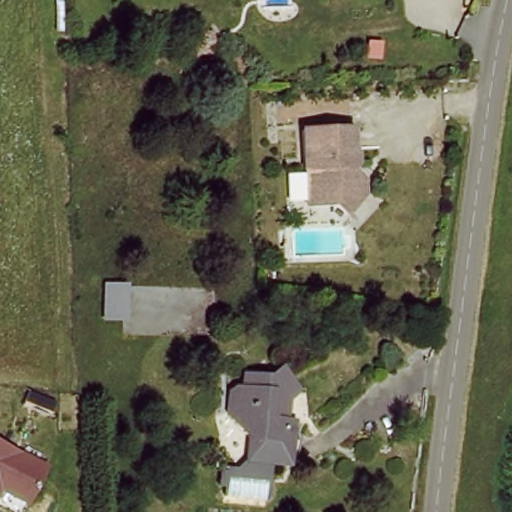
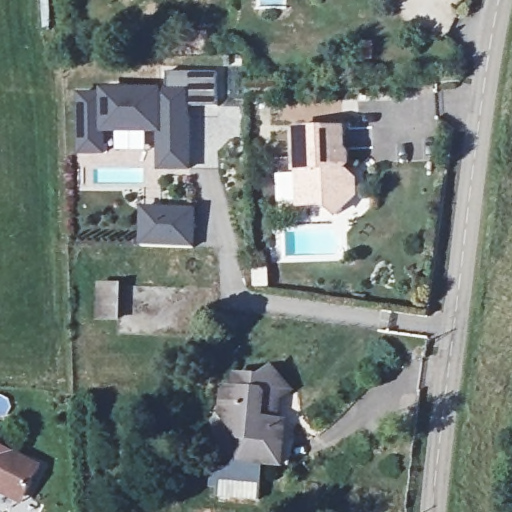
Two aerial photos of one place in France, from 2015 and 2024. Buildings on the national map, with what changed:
new [(102,95),(102,89),(171,90),(171,74),(219,74),(219,107),(194,107),(193,171),(161,172),(161,135),(110,135),(108,156),(83,156),(83,96),(102,95)]
unchanged [(305,209),(304,174),(302,174),(301,135),(349,133),(350,153),(354,157),(354,176),(352,180),(352,198),(361,210),(341,224),(329,209),(305,209)]
new [(199,208),(197,248),(142,246),(144,208),(199,208)]
unchanged [(126,323),(94,323),(94,281),(126,280),(126,323)]
unchanged [(278,357),(282,365),(294,360),(306,388),(292,396),(289,414),(298,417),(289,459),(285,478),(242,470),(245,450),(249,428),(231,402),(234,382),(254,370),(254,354),(278,357)]
unchanged [(36,512),(0,512),(0,439),(57,468),(36,512)]

